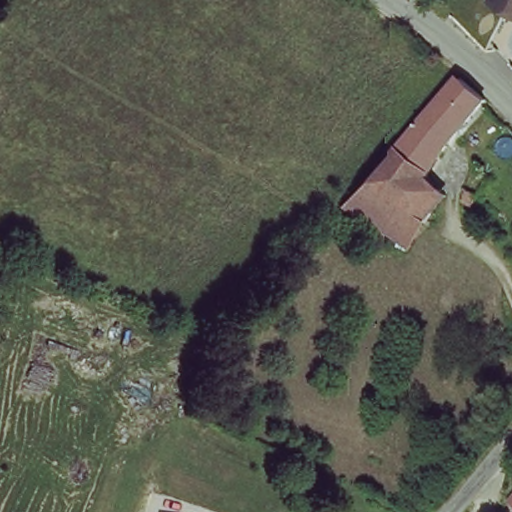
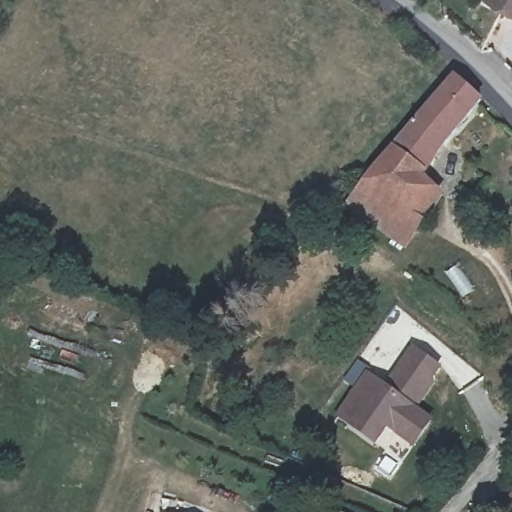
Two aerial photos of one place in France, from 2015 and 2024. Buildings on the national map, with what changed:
unchanged [(494,4),(495,0),(512,0),(512,14),(494,4)]
unchanged [(401,145),(454,77),(479,104),(439,151),(416,184),(439,201),(402,244),(400,246),(347,210),(401,145)]
unchanged [(485,135),(495,125),(505,137),(497,147),(485,135)]
new [(435,421),(414,448),(395,435),(388,430),(375,447),(336,416),(367,372),(383,384),(413,346),(441,367),(434,378),(437,384),(419,408),(435,421)]
unchanged [(504,499),(512,488),(512,506),(504,499)]
unchanged [(190,504),(211,512),(187,512),(190,504)]

